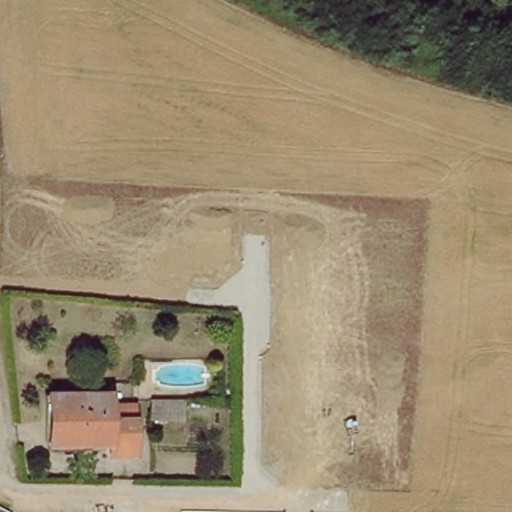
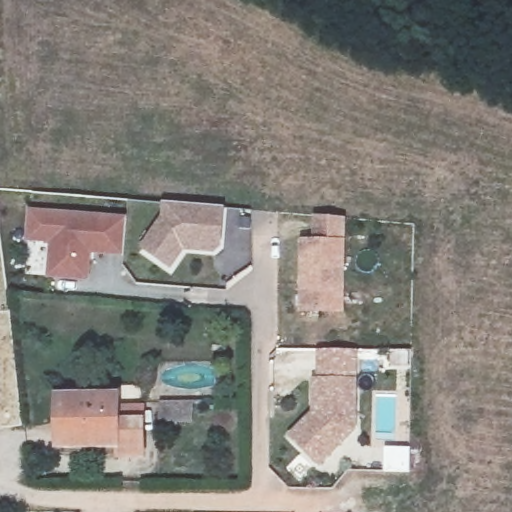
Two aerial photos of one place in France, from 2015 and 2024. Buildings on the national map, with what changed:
new [(215,254),(183,250),(170,268),(142,247),(162,218),(163,203),(226,209),(223,247),(215,254)]
new [(91,255),(89,281),(48,278),(52,246),(27,244),(30,209),(125,216),(123,257),(91,255)]
new [(301,313),(302,240),(314,240),(315,218),(344,217),(345,242),(344,313),(301,313)]
new [(357,431),(319,468),(288,436),(314,412),(314,378),(319,378),(319,351),(356,352),(357,431)]
unchanged [(122,392),(123,405),(143,405),(143,452),(118,452),(118,443),(61,445),(62,392),(122,392)]

